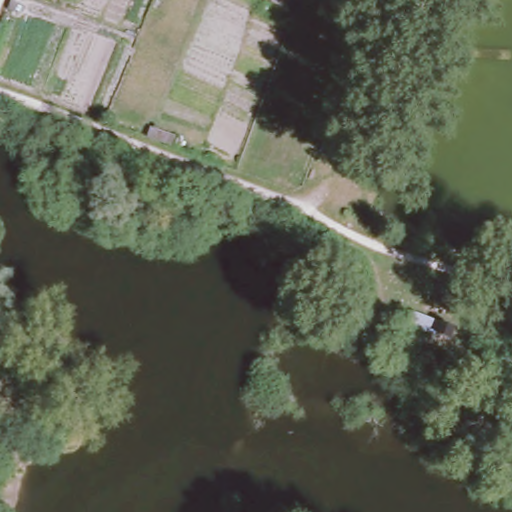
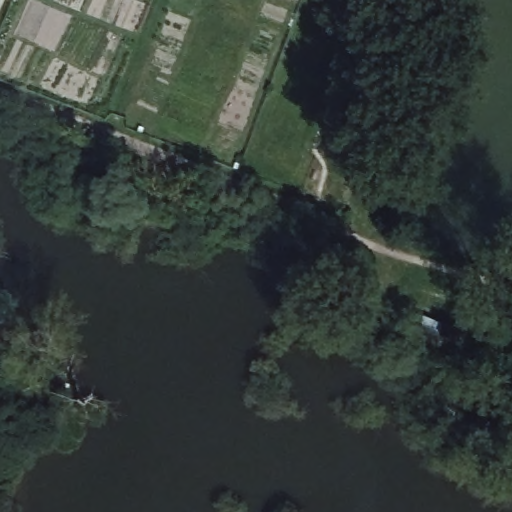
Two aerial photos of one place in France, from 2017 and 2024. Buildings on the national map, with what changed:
unchanged [(412,311),(456,326),(451,341),(407,324),(412,311)]

